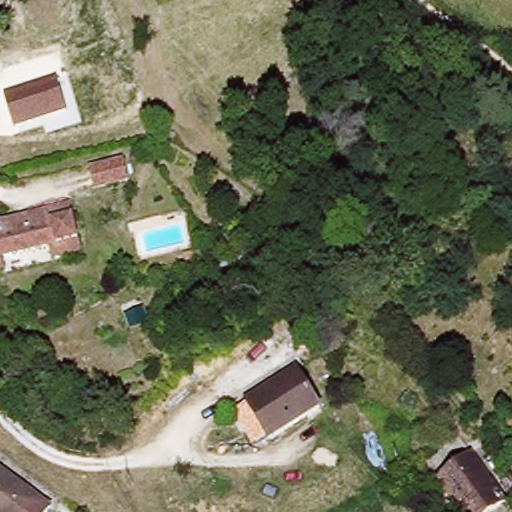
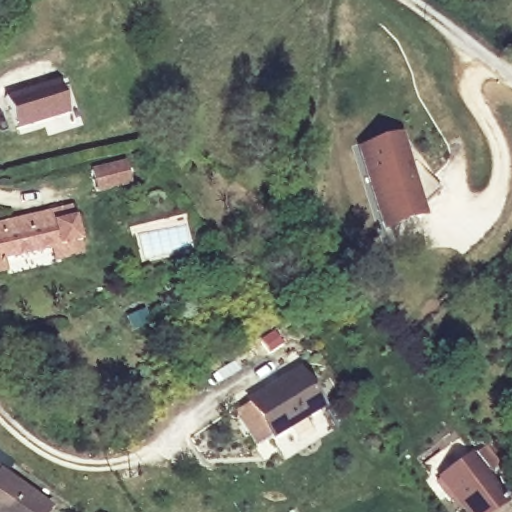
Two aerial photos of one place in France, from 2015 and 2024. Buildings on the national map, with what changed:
unchanged [(405,20),(390,37),(382,30),(397,14),(405,20)]
unchanged [(5,95),(59,79),(69,116),(15,131),(5,95)]
new [(397,139),(403,157),(397,159),(398,164),(410,161),(438,192),(420,210),(422,218),(383,229),(360,151),(397,139)]
unchanged [(125,163),(130,183),(95,190),(90,168),(125,163)]
unchanged [(61,261),(59,249),(7,261),(10,271),(0,273),(0,219),(77,203),(85,243),(88,255),(61,261)]
unchanged [(147,325),(128,333),(122,318),(141,311),(147,325)]
unchanged [(240,404),(305,366),(326,404),(263,441),(240,404)]
unchanged [(509,502),(494,512),(469,512),(442,476),(472,454),(509,502)]
unchanged [(53,507),(49,512),(0,512),(0,464),(53,507)]

